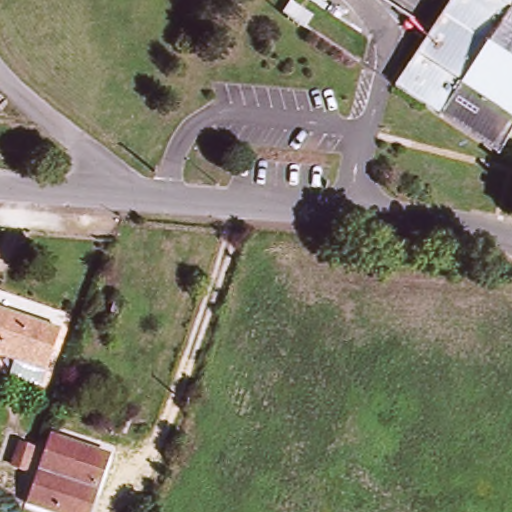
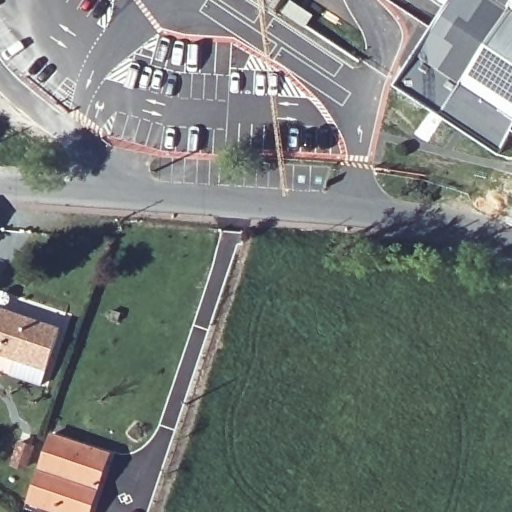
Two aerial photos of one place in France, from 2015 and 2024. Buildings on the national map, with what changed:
unchanged [(395,89),(453,0),(512,0),(512,137),(498,157),(395,89)]
unchanged [(28,382),(11,376),(14,362),(0,357),(0,310),(62,331),(42,387),(28,382)]
unchanged [(53,436),(110,455),(90,512),(58,512),(30,503),(53,436)]
unchanged [(12,466),(22,442),(32,446),(23,470),(12,466)]

